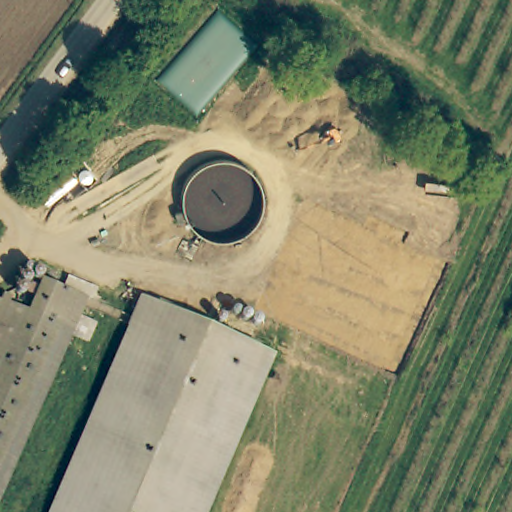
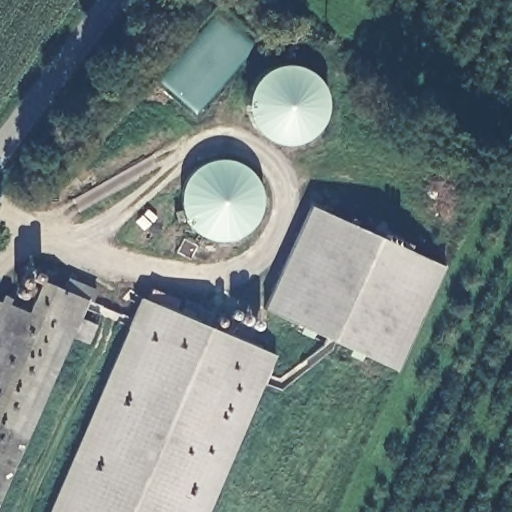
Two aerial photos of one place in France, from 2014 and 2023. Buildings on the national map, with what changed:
new [(363,354),(359,360),(347,355),(350,348),(313,331),(309,337),(298,332),(301,326),(264,309),(311,205),(347,222),(350,216),(357,219),(354,225),(402,247),(405,242),(411,244),(409,250),(444,267),(397,370),(363,354)]
unchanged [(0,495),(0,297),(3,298),(6,291),(14,295),(10,303),(30,312),(37,298),(44,282),(88,302),(79,322),(0,495)]
unchanged [(277,360),(250,420),(209,512),(47,512),(122,346),(124,341),(142,300),(277,360)]

